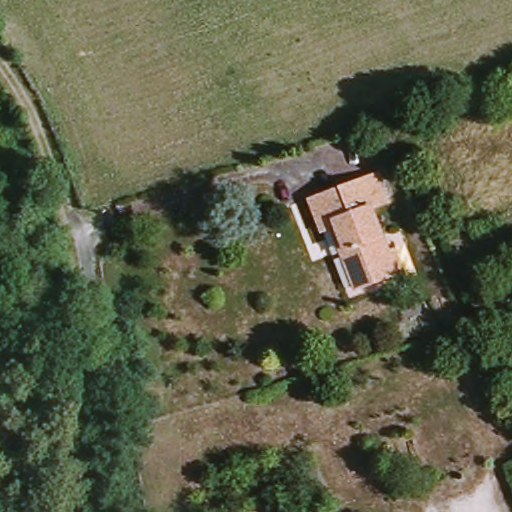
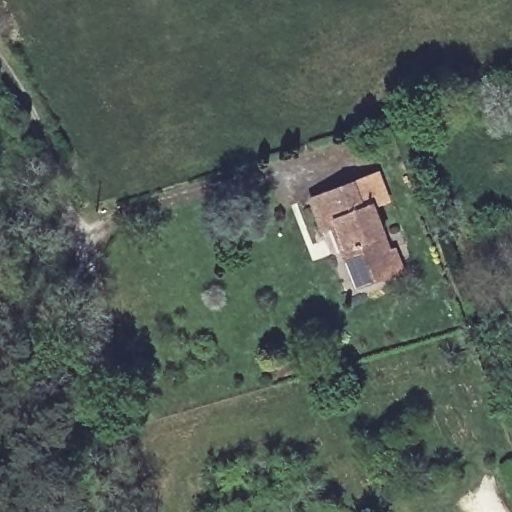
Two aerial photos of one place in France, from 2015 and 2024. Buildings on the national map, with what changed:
unchanged [(421,265),(407,270),(369,283),(354,247),(359,243),(350,222),(340,228),(326,194),(369,180),(379,204),(389,199),(401,228),(394,232),(399,246),(415,243),(421,265)]

